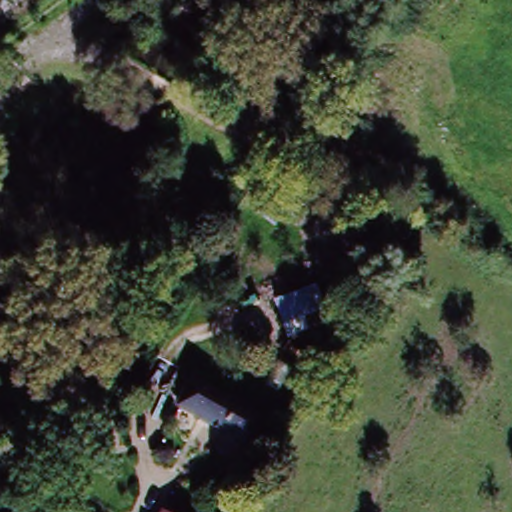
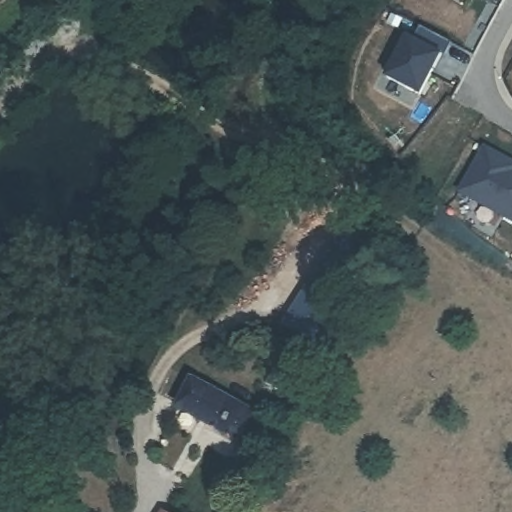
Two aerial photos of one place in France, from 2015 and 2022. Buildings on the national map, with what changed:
new [(433,75),(436,76),(424,101),(382,79),(403,41),(441,59),(433,75)]
new [(490,148),(512,160),(512,218),(466,192),(490,148)]
unchanged [(243,410),(284,433),(269,459),(175,406),(197,371),(221,384),(215,393),(229,402),(232,398),(245,406),(243,410)]
unchanged [(160,510),(164,512),(159,512),(160,510)]

